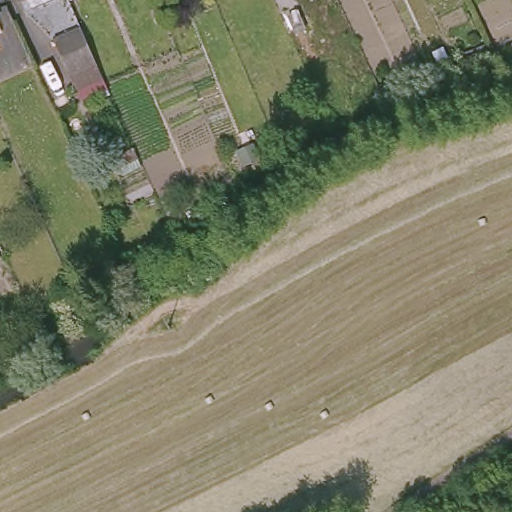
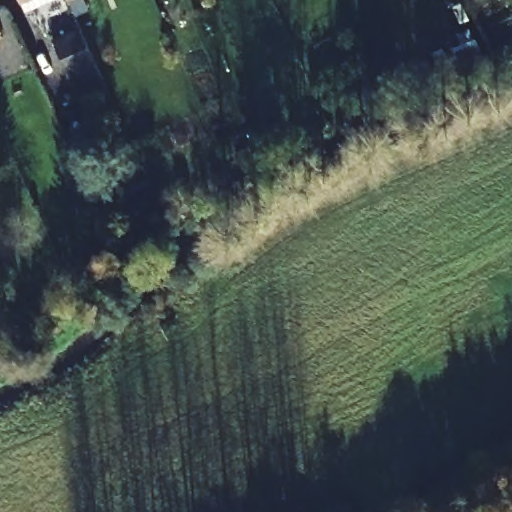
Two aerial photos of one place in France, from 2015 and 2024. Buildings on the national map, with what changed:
unchanged [(12,10),(7,0),(33,0),(25,4),(12,10)]
unchanged [(97,70),(69,81),(51,45),(80,32),(97,70)]

